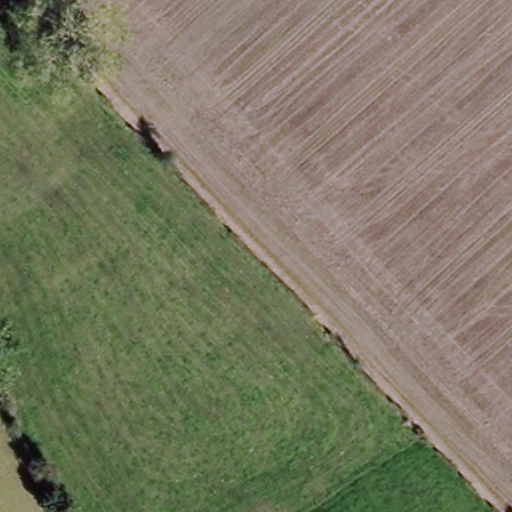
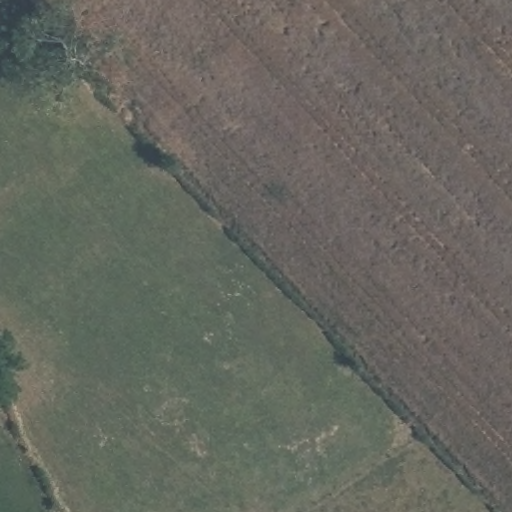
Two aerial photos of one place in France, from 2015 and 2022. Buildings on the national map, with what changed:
[]

